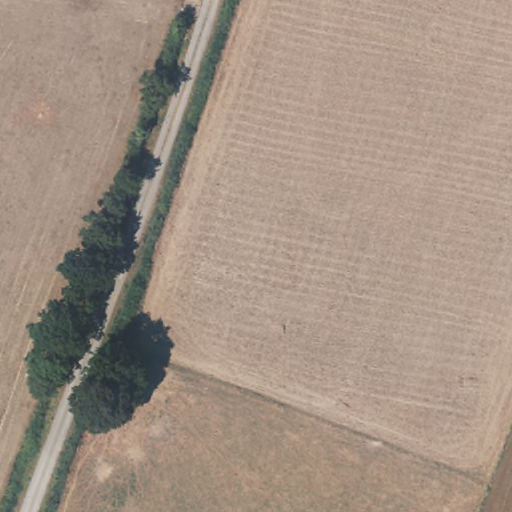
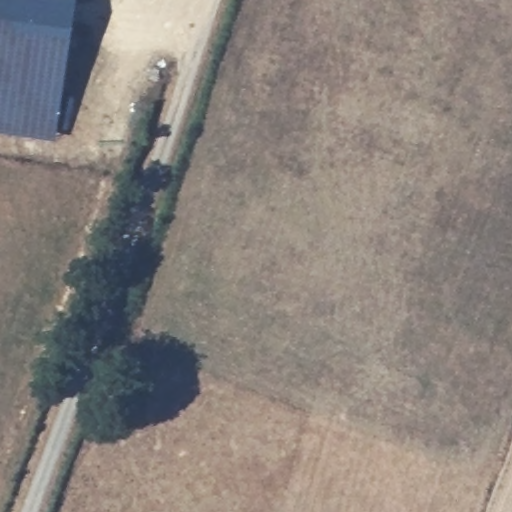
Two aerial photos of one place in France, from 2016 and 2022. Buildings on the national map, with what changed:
new [(0,132),(0,0),(76,0),(55,140),(0,132)]

